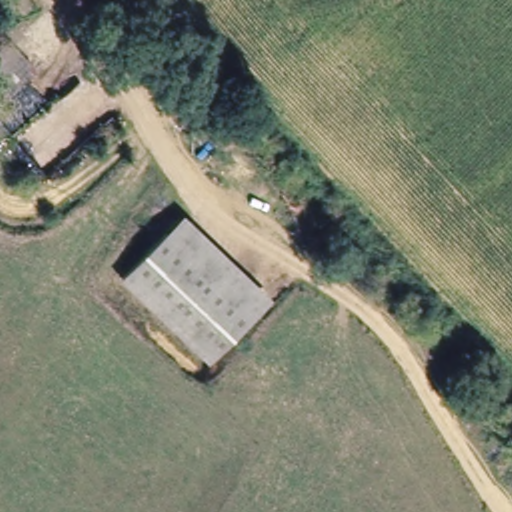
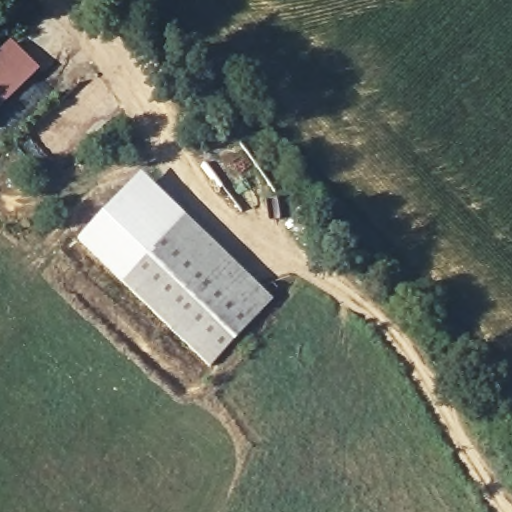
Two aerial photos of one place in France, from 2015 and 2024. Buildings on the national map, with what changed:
new [(7,42),(36,70),(0,109),(0,50),(7,42)]
new [(120,283),(76,241),(140,175),(189,223),(120,283)]
unchanged [(274,302),(210,371),(120,283),(189,223),(274,302)]

